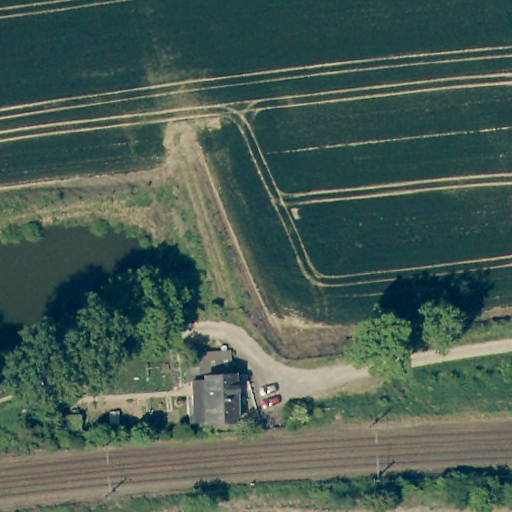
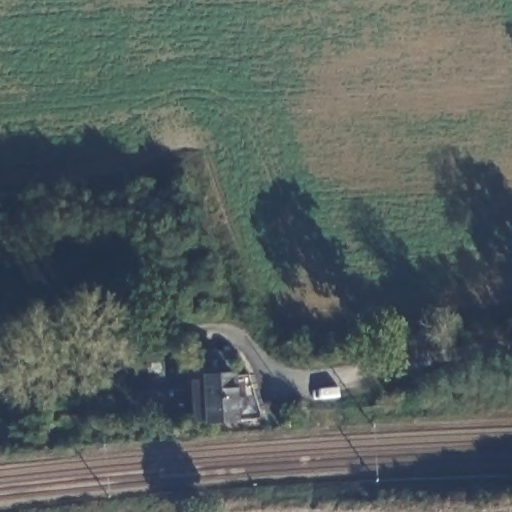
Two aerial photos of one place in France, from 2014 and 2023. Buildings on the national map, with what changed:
unchanged [(209,372),(237,372),(239,433),(200,432),(200,393),(194,393),(194,365),(209,365),(209,372)]

